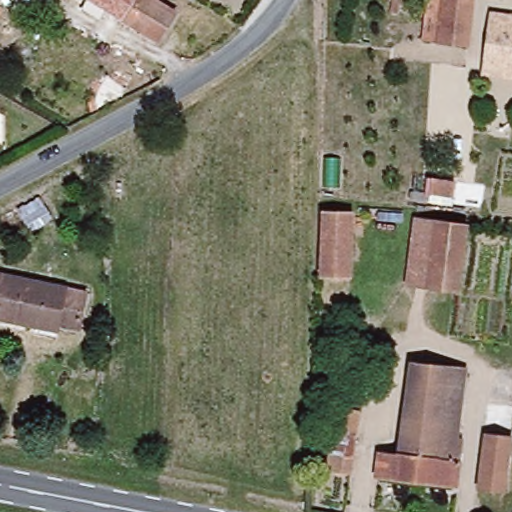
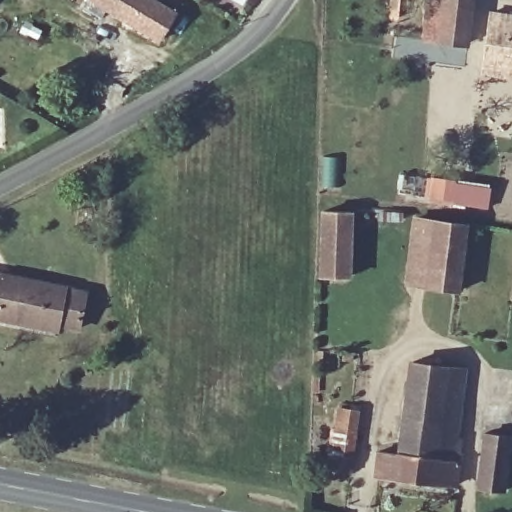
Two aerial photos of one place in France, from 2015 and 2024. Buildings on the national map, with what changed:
unchanged [(83,0),(164,0),(170,3),(156,35),(104,8),(98,17),(79,8),(83,0)]
unchanged [(429,37),(433,0),(459,0),(454,41),(429,37)]
unchanged [(484,55),(493,9),(512,13),(512,75),(481,69),(484,55)]
new [(422,201),(425,177),(491,187),(487,211),(422,201)]
unchanged [(353,213),(343,280),(314,275),(324,209),(353,213)]
unchanged [(466,225),(456,289),(405,281),(415,217),(466,225)]
unchanged [(78,325),(38,315),(34,325),(0,316),(0,271),(85,291),(78,325)]
unchanged [(458,371),(445,456),(451,457),(447,483),(367,473),(371,452),(390,452),(404,364),(458,371)]
unchanged [(349,471),(315,469),(314,460),(319,460),(323,427),(327,427),(331,398),(354,399),(349,471)]
unchanged [(508,439),(500,488),(476,486),(484,438),(508,439)]

